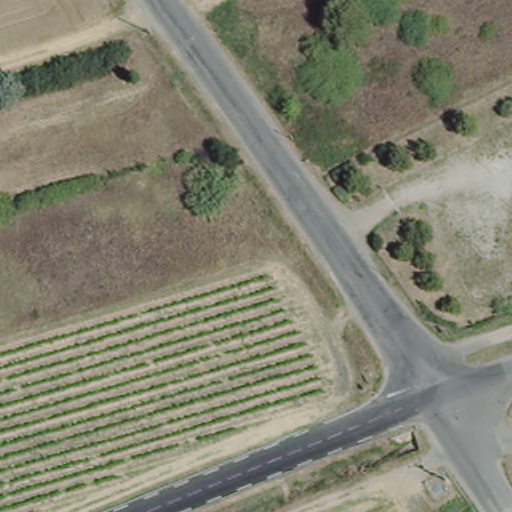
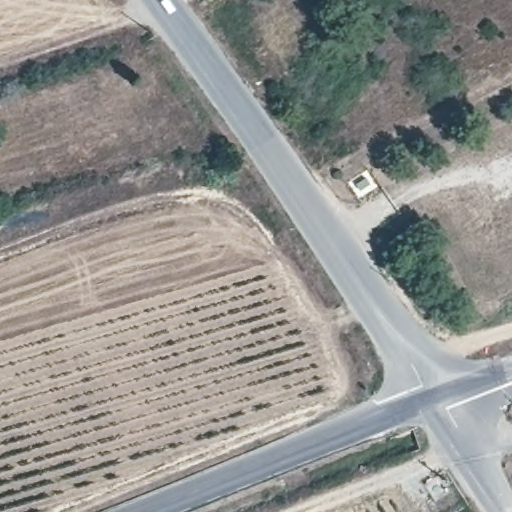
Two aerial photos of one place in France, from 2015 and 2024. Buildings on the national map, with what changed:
unchanged [(200,164),(219,160),(222,170),(204,175),(200,164)]
unchanged [(438,477),(449,494),(435,502),(424,484),(438,477)]

